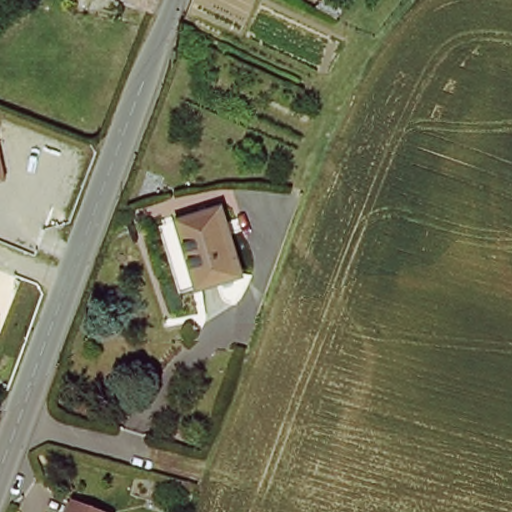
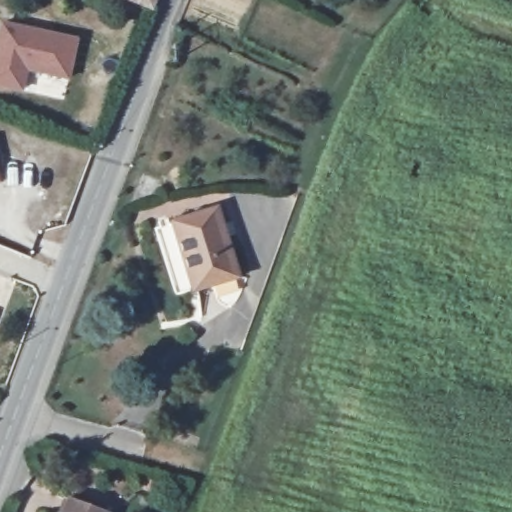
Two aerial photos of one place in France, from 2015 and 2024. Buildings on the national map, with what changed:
demolished [(97,16),(79,9),(83,0),(98,0),(102,1),(97,16)]
unchanged [(160,0),(157,9),(134,0),(160,0)]
new [(80,37),(71,82),(27,72),(23,93),(0,88),(0,29),(2,22),(80,37)]
unchanged [(4,181),(0,182),(0,166),(4,181)]
unchanged [(219,207),(242,274),(200,288),(177,221),(219,207)]
unchanged [(75,501),(104,512),(71,512),(75,501)]

